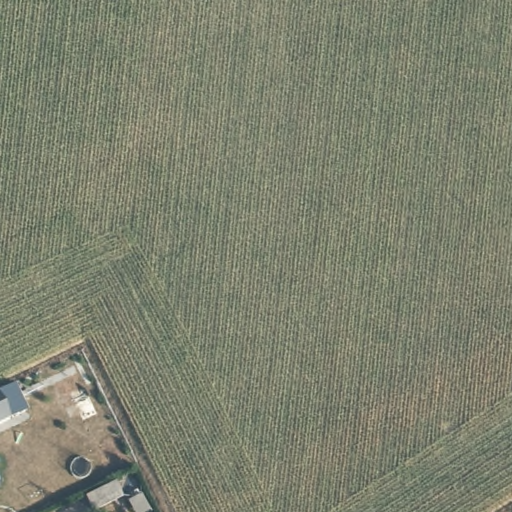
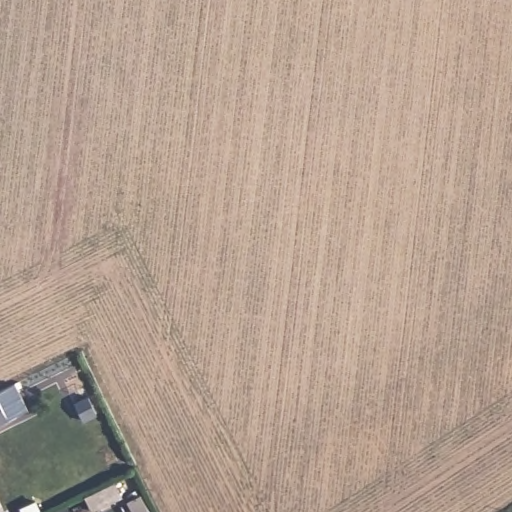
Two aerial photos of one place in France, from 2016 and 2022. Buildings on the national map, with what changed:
unchanged [(0,422),(0,397),(10,417),(0,422)]
unchanged [(114,480),(120,494),(91,508),(85,495),(114,480)]

